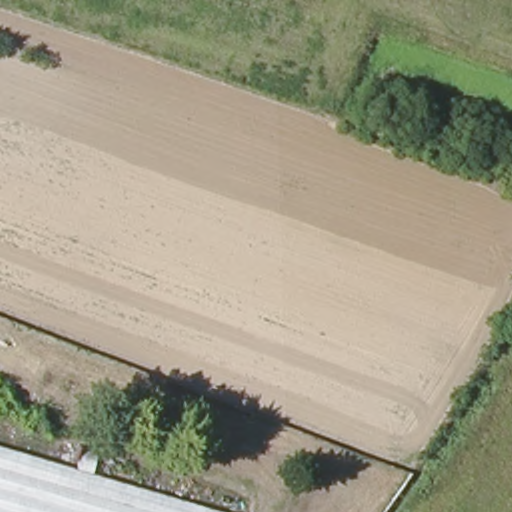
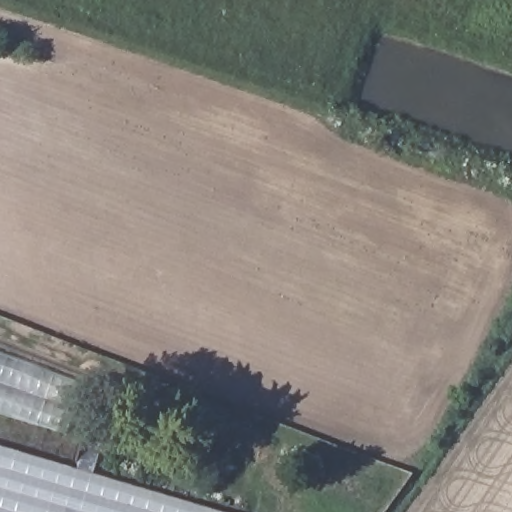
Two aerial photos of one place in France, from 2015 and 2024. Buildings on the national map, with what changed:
new [(67,434),(67,435),(0,411),(0,351),(82,381),(67,434)]
demolished [(23,373),(29,360),(42,366),(37,378),(23,373)]
unchanged [(0,450),(213,512),(0,512),(0,450)]

